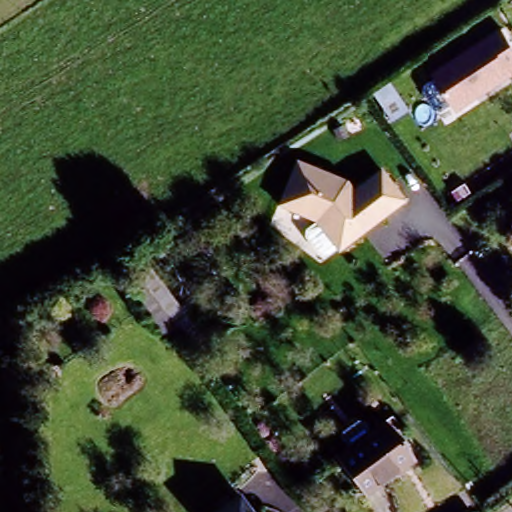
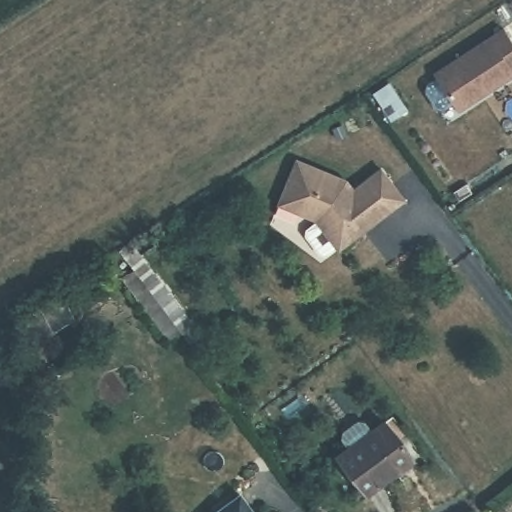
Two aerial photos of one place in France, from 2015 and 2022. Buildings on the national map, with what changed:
unchanged [(512,45),(512,77),(455,111),(430,73),(503,30),(512,45)]
unchanged [(406,201),(337,252),(334,249),(324,255),(321,256),(319,255),(305,237),(304,234),(305,231),(308,229),(316,224),(314,221),(297,215),(292,227),(273,220),(278,208),(277,208),(275,207),(294,159),(346,180),(352,188),(381,168),(406,201)]
unchanged [(149,267),(182,311),(191,324),(205,341),(192,350),(178,333),(168,341),(125,284),(149,267)]
unchanged [(334,467),(381,432),(405,464),(358,499),(334,467)]
unchanged [(221,512),(240,498),(251,512),(221,512)]

